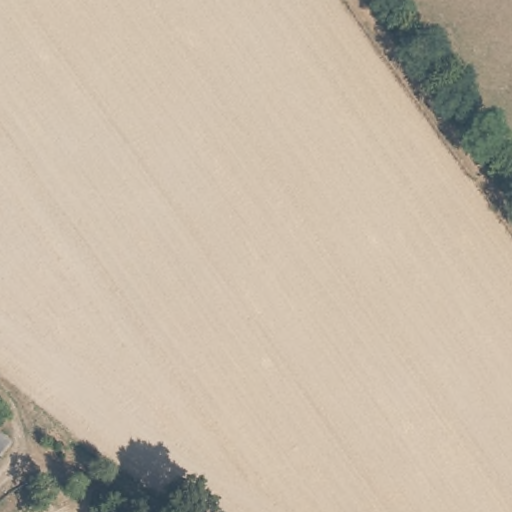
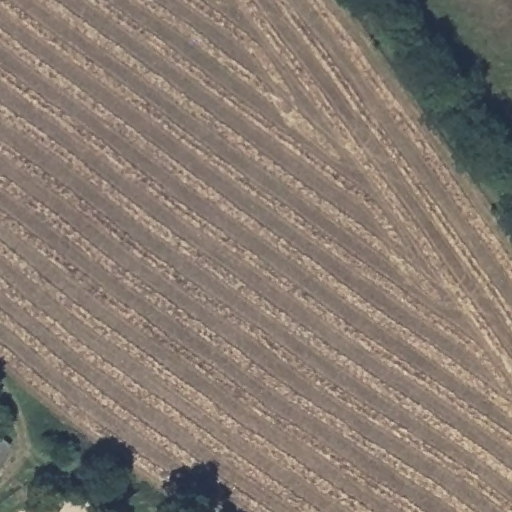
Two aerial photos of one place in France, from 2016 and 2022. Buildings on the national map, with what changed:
unchanged [(0,458),(0,440),(10,447),(0,458)]

